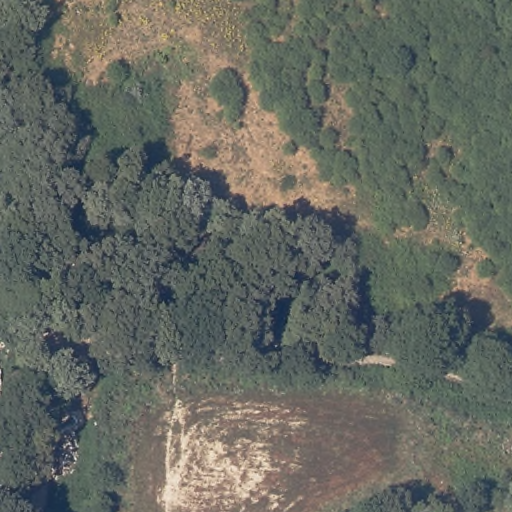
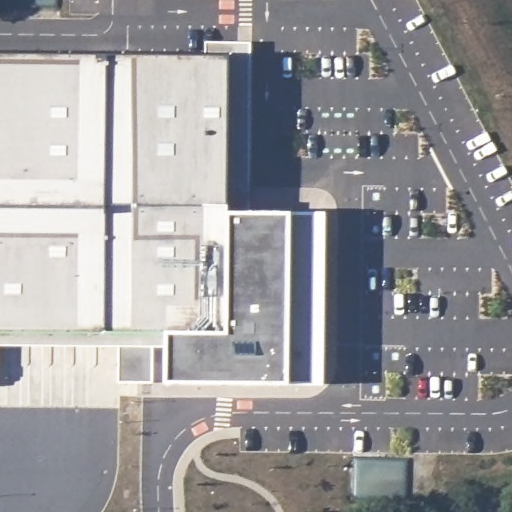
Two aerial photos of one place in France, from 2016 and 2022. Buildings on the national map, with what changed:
new [(230,203),(231,210),(295,212),(320,212),(318,384),(292,384),(169,381),(169,334),(152,334),(154,383),(119,382),(118,333),(0,332),(0,55),(229,57),(230,203)]

